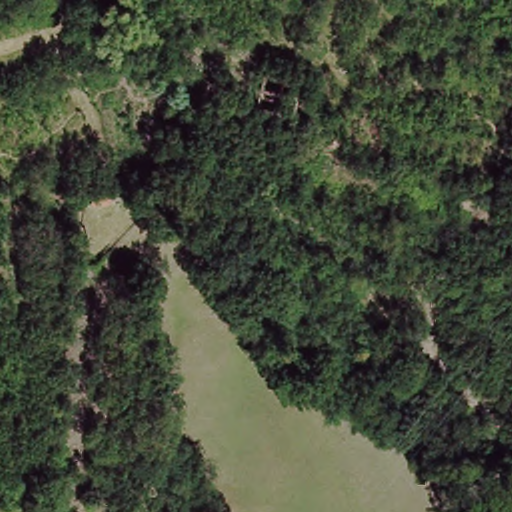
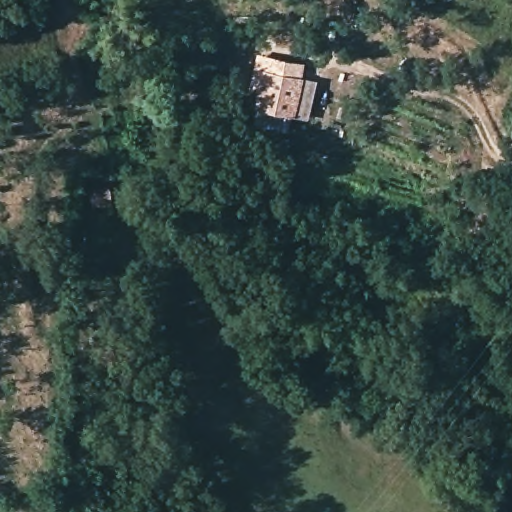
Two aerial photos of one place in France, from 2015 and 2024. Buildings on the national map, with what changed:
new [(263,69),(266,69),(269,56),(302,63),(300,76),(303,76),(295,116),(254,107),(263,69)]
unchanged [(108,195),(108,212),(93,212),(92,195),(108,195)]

